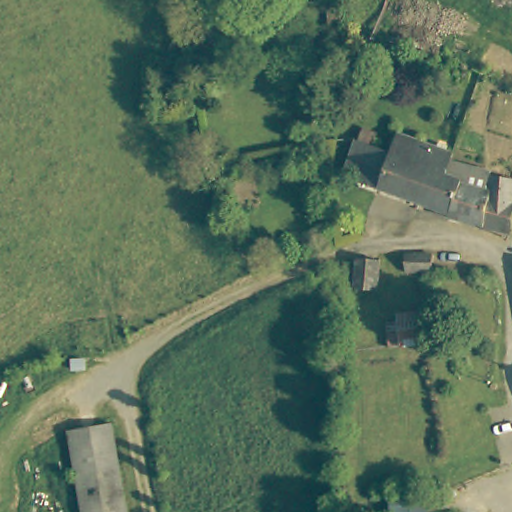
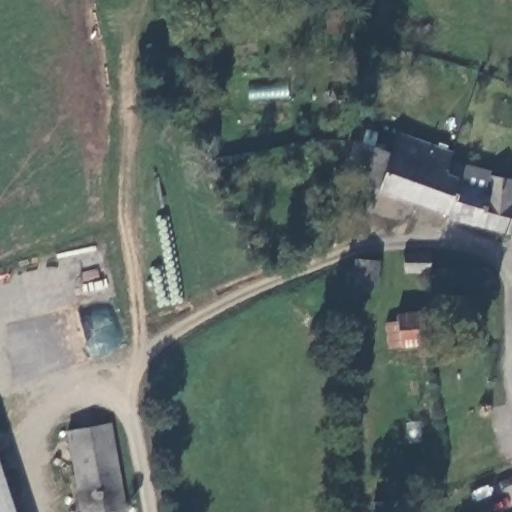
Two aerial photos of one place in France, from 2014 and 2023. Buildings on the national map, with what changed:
unchanged [(391,148),(397,129),(455,144),(453,151),(450,165),(465,169),(454,207),(420,196),(432,161),(391,148)]
unchanged [(357,175),(358,169),(347,166),(355,135),(391,148),(432,161),(420,196),(357,175)]
unchanged [(485,226),(486,221),(452,212),(454,207),(465,169),(450,165),(453,151),(494,159),(493,170),(512,171),(512,211),(510,228),(485,226)]
unchanged [(430,254),(431,270),(412,272),(405,273),(402,256),(430,254)]
unchanged [(380,258),(380,288),(356,286),(355,260),(380,258)]
unchanged [(348,264),(349,286),(349,299),(330,299),(318,299),(320,266),(348,264)]
unchanged [(401,309),(406,308),(422,304),(427,338),(405,339),(392,340),(392,317),(402,316),(401,309)]
unchanged [(123,512),(80,512),(67,427),(109,420),(123,512)]
new [(0,512),(0,468),(14,512),(0,512)]

